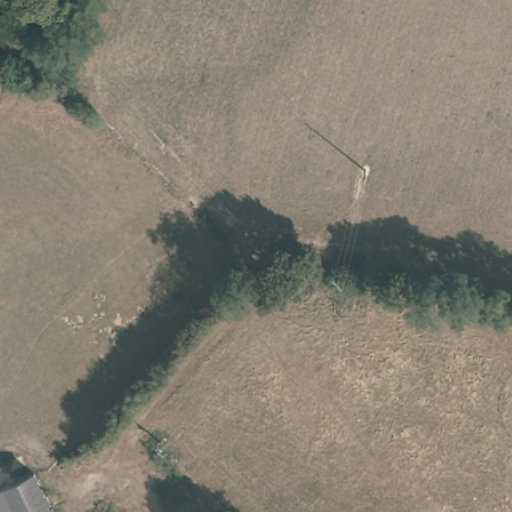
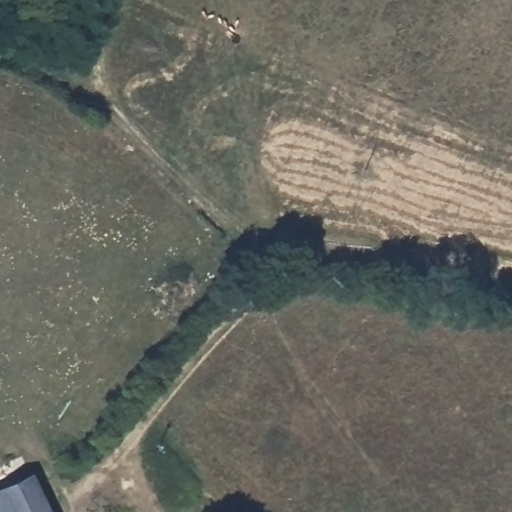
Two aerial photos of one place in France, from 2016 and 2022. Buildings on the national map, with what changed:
unchanged [(0,484),(40,465),(61,512),(1,512),(0,510),(0,484)]

